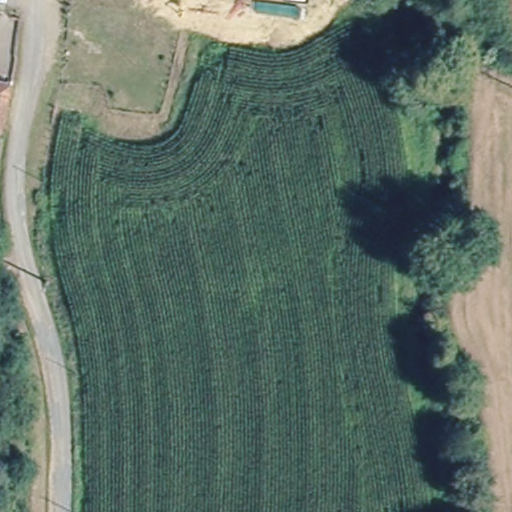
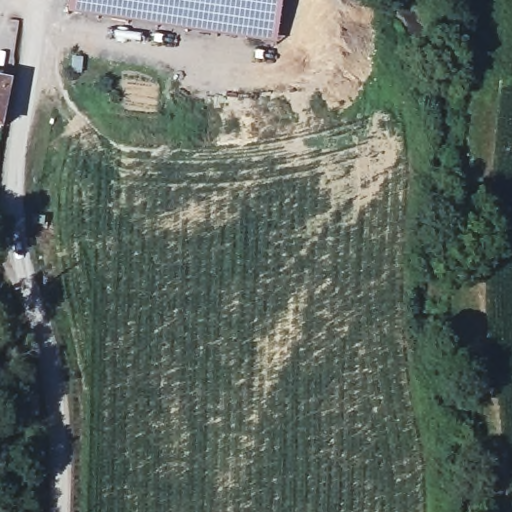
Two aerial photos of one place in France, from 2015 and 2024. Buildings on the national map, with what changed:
new [(68,15),(70,0),(284,0),(277,47),(68,15)]
unchanged [(10,125),(0,123),(0,77),(14,79),(10,125)]

